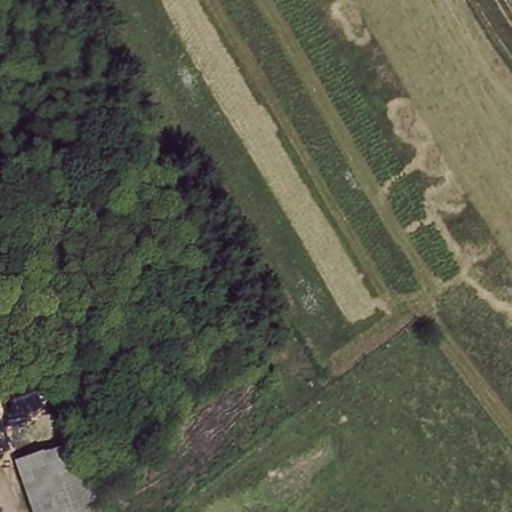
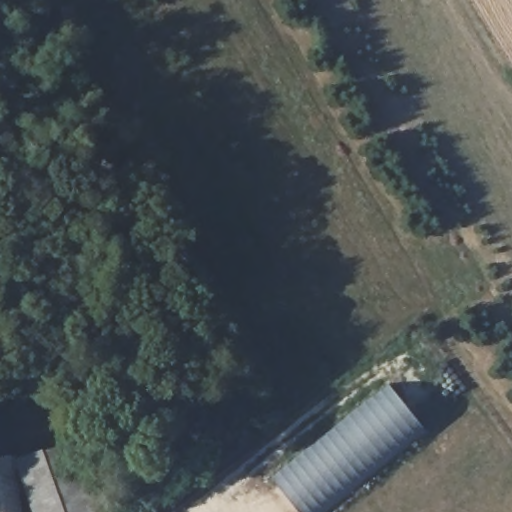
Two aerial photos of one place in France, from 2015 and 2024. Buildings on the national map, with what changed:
new [(323,512),(299,512),(276,483),(393,389),(425,430),(323,512)]
unchanged [(12,459),(66,438),(96,512),(33,512),(12,459)]

